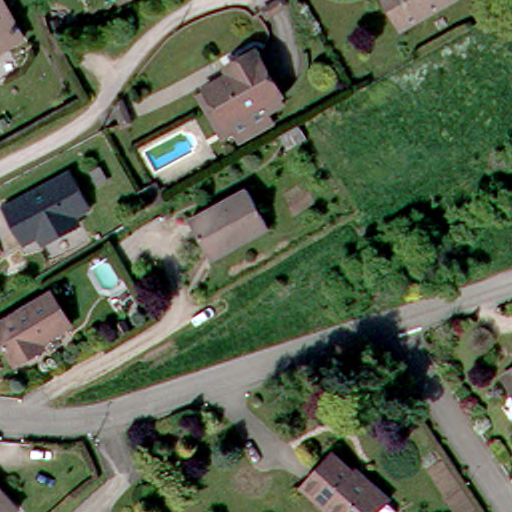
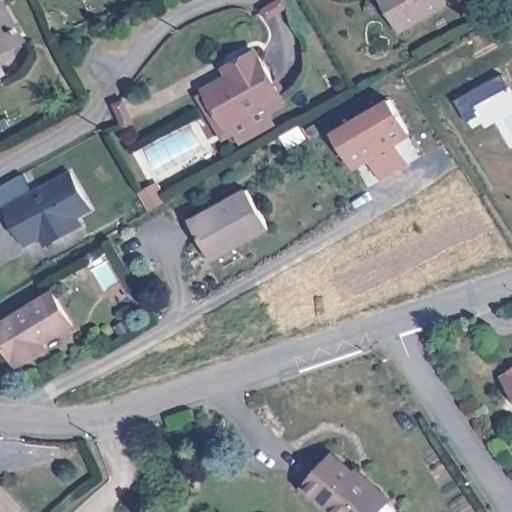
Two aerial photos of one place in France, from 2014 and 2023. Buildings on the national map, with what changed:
unchanged [(0,49),(0,0),(3,0),(24,37),(0,49)]
unchanged [(390,0),(452,0),(406,27),(390,0)]
unchanged [(286,90),(284,91),(232,120),(212,85),(211,83),(235,70),(231,63),(240,58),(261,46),(286,90)]
new [(504,71),(511,85),(487,97),(475,104),(480,113),(469,119),(456,98),(480,84),(504,71)]
unchanged [(284,91),(288,99),(272,108),(277,117),(244,136),(239,126),(227,132),(204,89),(212,85),(232,120),(284,91)]
new [(371,160),(356,168),(334,131),(392,96),(412,135),(398,144),(410,164),(382,180),(371,160)]
unchanged [(72,169),(94,211),(78,219),(81,226),(42,245),(39,239),(25,246),(2,205),(72,169)]
unchanged [(139,193),(155,184),(164,201),(147,210),(139,193)]
unchanged [(210,255),(191,221),(247,189),(269,228),(236,247),(213,260),(210,255)]
unchanged [(20,365),(0,333),(0,324),(55,291),(75,324),(46,342),(49,347),(42,352),(20,365)]
unchanged [(508,377),(510,370),(512,369),(512,383),(508,377)]
unchanged [(302,486),(333,453),(355,475),(352,477),(362,485),(367,480),(390,503),(382,512),(330,512),(302,486)]
unchanged [(0,476),(24,501),(11,512),(0,512),(0,476)]

